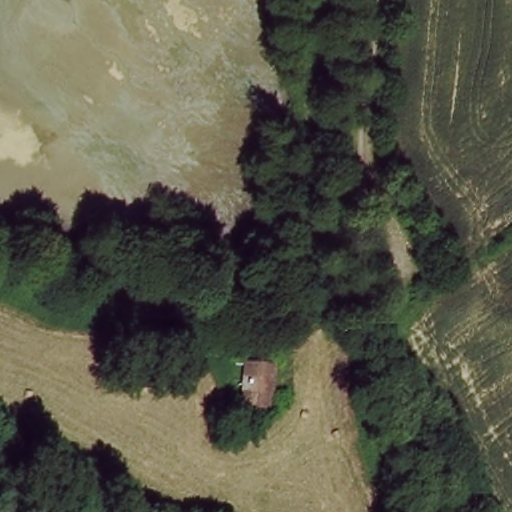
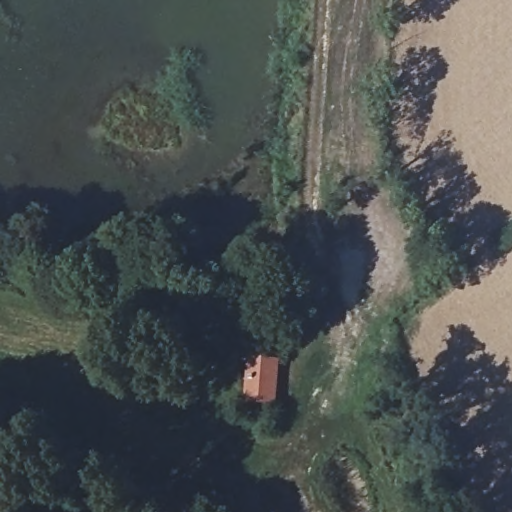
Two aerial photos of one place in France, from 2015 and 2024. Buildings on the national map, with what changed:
unchanged [(281,410),(247,405),(251,360),(283,362),(281,410)]

